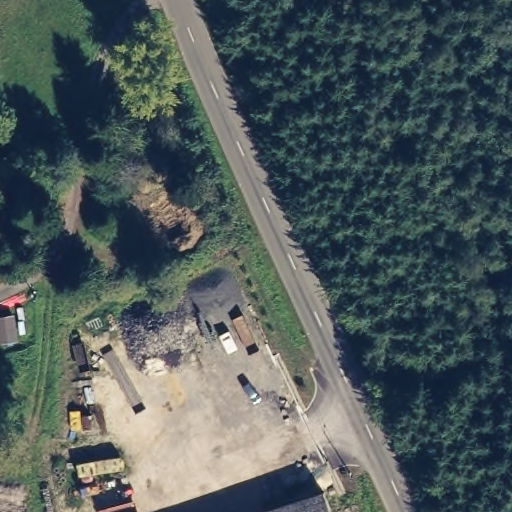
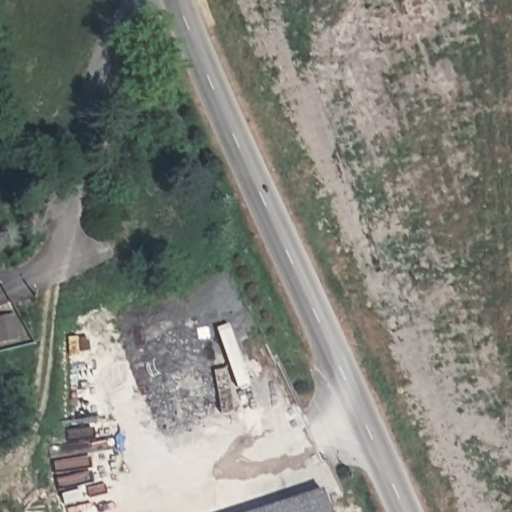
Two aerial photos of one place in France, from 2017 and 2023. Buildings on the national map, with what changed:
unchanged [(328,491),(335,512),(261,512),(328,491)]

